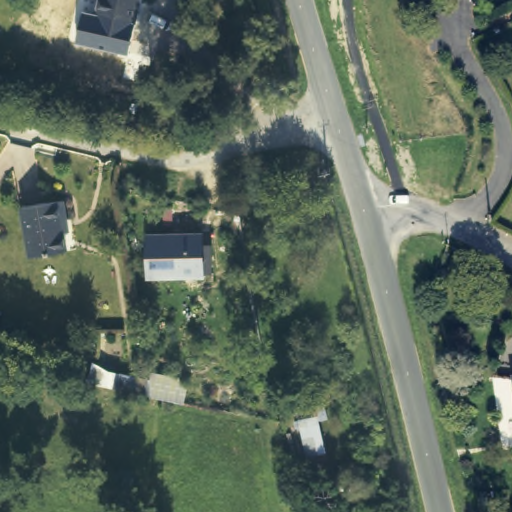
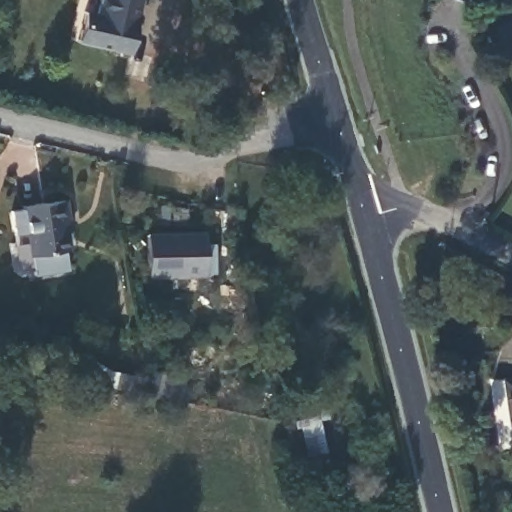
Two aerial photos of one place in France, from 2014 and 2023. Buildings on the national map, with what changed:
unchanged [(97,35),(102,15),(94,13),(97,0),(140,0),(134,23),(126,21),(121,42),(97,35)]
unchanged [(67,198),(70,217),(66,218),(71,250),(34,255),(27,205),(67,198)]
unchanged [(202,235),(202,275),(146,276),(146,236),(202,235)]
unchanged [(511,442),(500,372),(512,374),(512,442),(511,442)]
unchanged [(217,384),(215,407),(151,400),(147,379),(217,384)]
unchanged [(327,468),(310,472),(297,420),(315,416),(327,468)]

